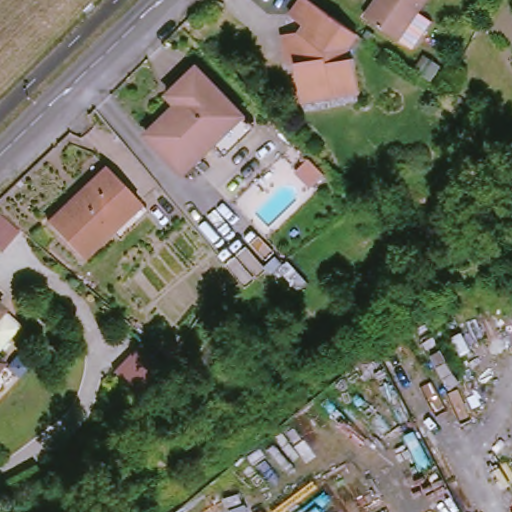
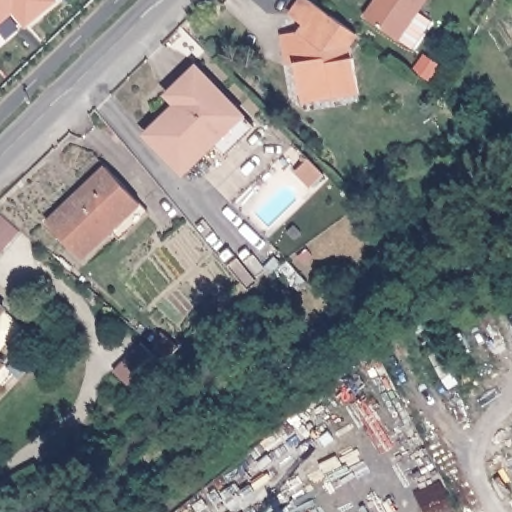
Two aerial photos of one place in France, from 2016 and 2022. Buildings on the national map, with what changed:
new [(12,9),(6,15),(6,18),(0,22),(0,0),(55,0),(56,1),(27,26),(12,9)]
unchanged [(307,101),(302,62),(293,64),(289,39),(310,36),(312,38),(317,30),(295,14),(305,0),(314,0),(362,34),(351,50),(352,60),(359,59),(364,93),(307,101)]
unchanged [(380,0),(425,0),(397,39),(367,18),(380,0)]
unchanged [(151,139),(183,108),(174,98),(202,71),(217,85),(250,120),(189,178),(151,139)]
unchanged [(53,227),(112,172),(146,208),(87,263),(53,227)]
unchanged [(29,231),(9,254),(4,251),(0,256),(0,219),(6,212),(29,231)]
unchanged [(0,319),(0,301),(9,309),(0,319)]
unchanged [(157,346),(167,335),(181,346),(180,348),(171,358),(157,346)]
unchanged [(141,344),(166,367),(159,375),(141,395),(116,372),(134,353),(141,344)]
unchanged [(0,371),(0,357),(7,363),(0,371)]
unchanged [(0,385),(0,374),(6,379),(0,385)]
unchanged [(188,433),(194,446),(181,452),(175,440),(188,433)]

